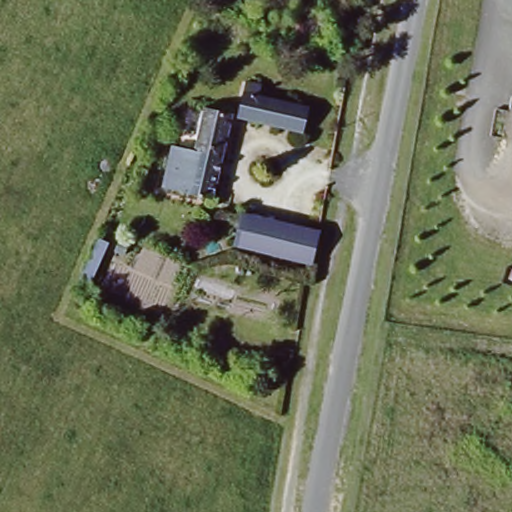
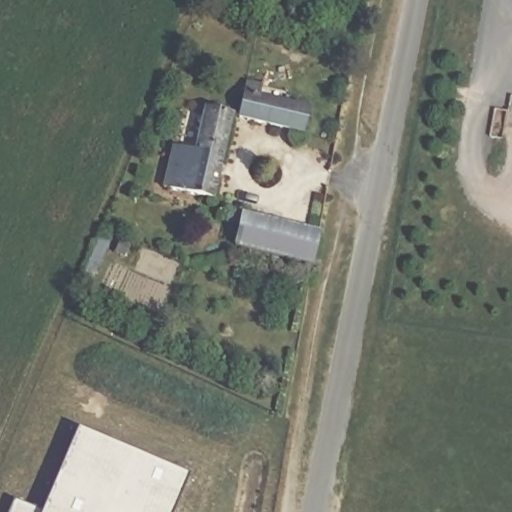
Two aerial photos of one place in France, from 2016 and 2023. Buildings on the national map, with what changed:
unchanged [(244,84),(262,88),(260,98),(307,109),(308,109),(303,134),(236,120),(244,84)]
unchanged [(163,188),(176,131),(190,135),(189,147),(195,148),(205,108),(232,114),(214,198),(163,188)]
unchanged [(233,254),(245,208),(322,226),(310,273),(233,254)]
new [(43,512),(77,429),(190,475),(174,512),(43,512)]
new [(42,512),(10,512),(15,500),(42,512)]

